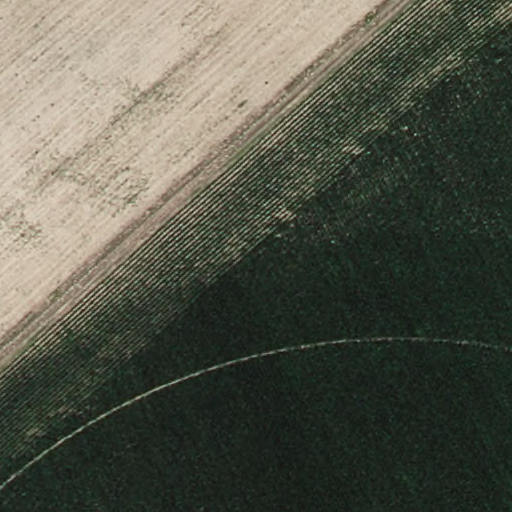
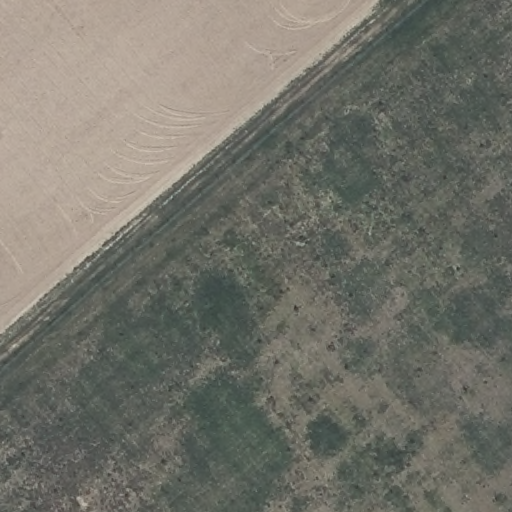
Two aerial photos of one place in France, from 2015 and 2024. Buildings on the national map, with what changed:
[]

